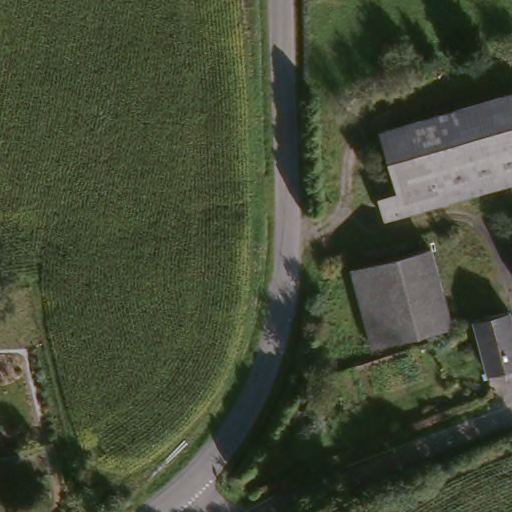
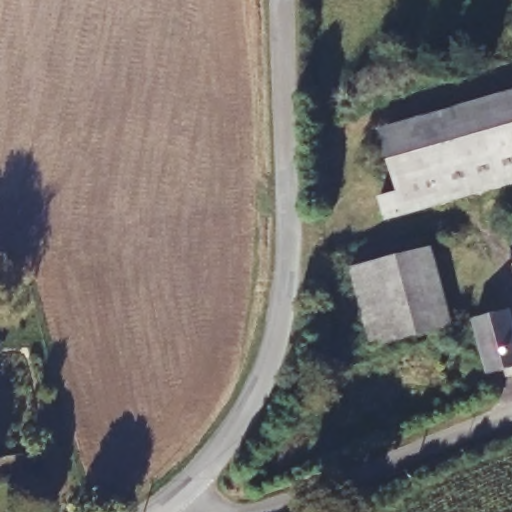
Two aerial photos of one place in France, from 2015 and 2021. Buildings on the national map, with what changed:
unchanged [(512,99),(512,187),(430,210),(383,223),(378,205),(397,198),(380,138),(512,99)]
unchanged [(510,220),(512,220),(512,234),(510,220)]
unchanged [(430,255),(452,325),(371,353),(348,282),(430,255)]
unchanged [(510,318),(512,330),(512,376),(488,381),(481,353),(474,327),(510,318)]

